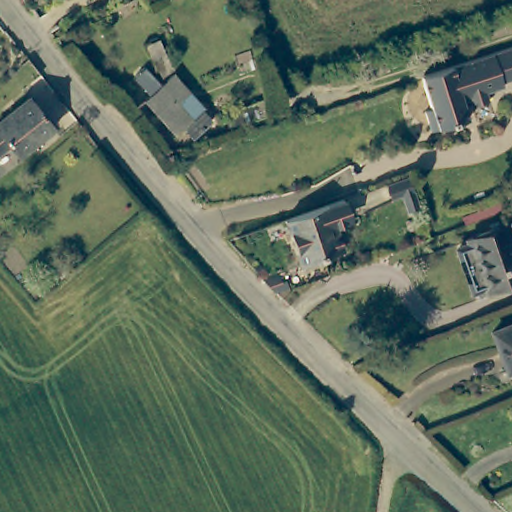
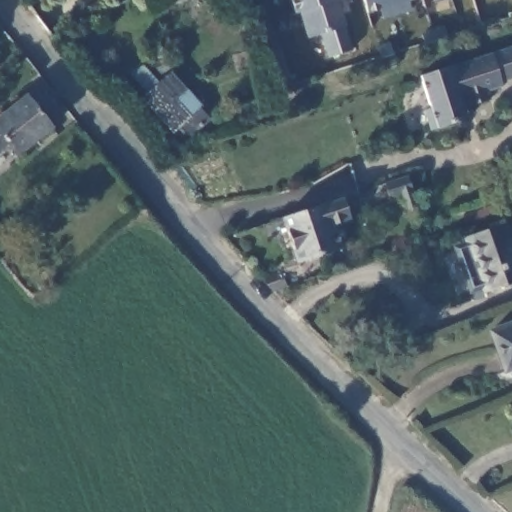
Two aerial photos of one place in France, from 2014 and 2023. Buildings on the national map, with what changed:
new [(345,28),(352,51),(331,58),(323,35),(311,39),(302,13),(297,14),(292,0),(338,0),(347,27),(345,28)]
new [(412,10),(385,19),(381,9),(368,13),(364,0),(411,0),(409,0),(412,10)]
new [(437,0),(442,0),(437,1),(437,0)]
unchanged [(503,77),(503,82),(487,87),(488,94),(466,101),(470,114),(430,126),(423,107),(428,100),(419,73),(512,42),(512,74),(503,77)]
unchanged [(179,73),(194,90),(182,99),(197,116),(180,130),(151,96),(179,73)]
unchanged [(31,96),(57,127),(22,155),(12,143),(0,155),(0,121),(7,114),(31,96)]
unchanged [(417,207),(405,211),(400,195),(391,198),(385,183),(406,175),(417,207)]
unchanged [(329,203),(342,253),(297,266),(283,215),(329,203)]
unchanged [(506,226),(512,244),(512,282),(485,291),(467,240),(506,226)]
unchanged [(512,324),(512,377),(508,369),(506,370),(492,331),(512,324)]

